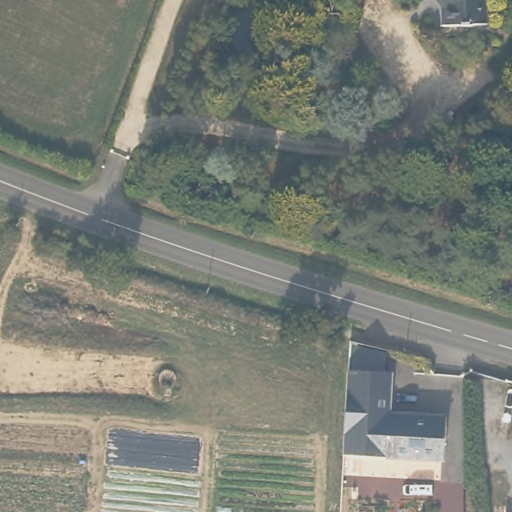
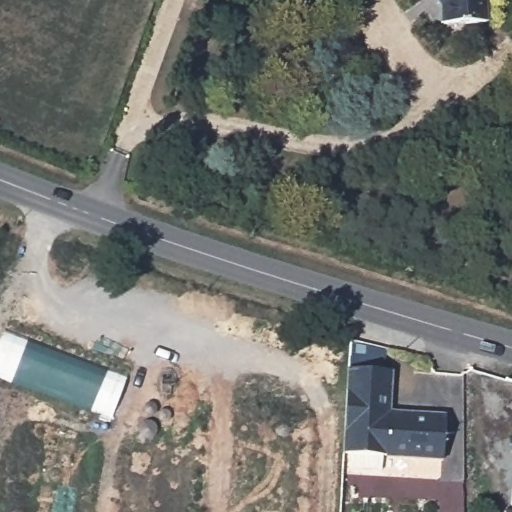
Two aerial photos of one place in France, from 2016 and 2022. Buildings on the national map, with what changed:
unchanged [(488,22),(445,25),(445,0),(489,0),(488,22)]
new [(0,381),(0,345),(5,333),(126,380),(108,421),(0,381)]
unchanged [(391,367),(389,408),(446,411),(443,455),(344,449),(349,364),(391,367)]
unchanged [(164,384),(172,385),(172,394),(163,393),(164,384)]

